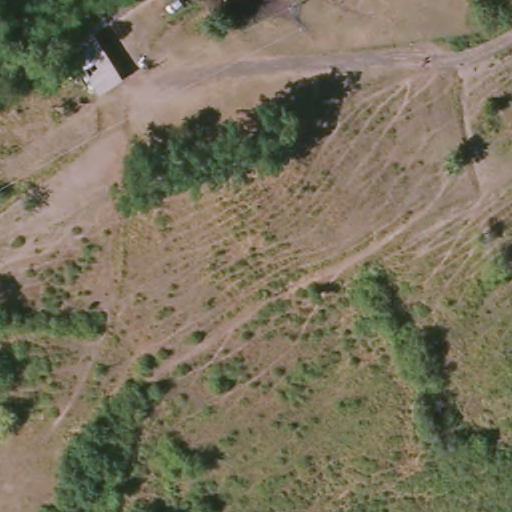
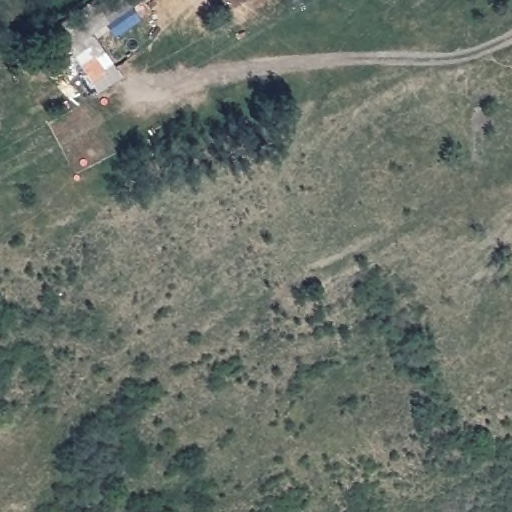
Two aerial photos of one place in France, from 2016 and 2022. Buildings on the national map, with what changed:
unchanged [(125,78),(102,93),(59,24),(96,0),(150,0),(96,36),(125,78)]

